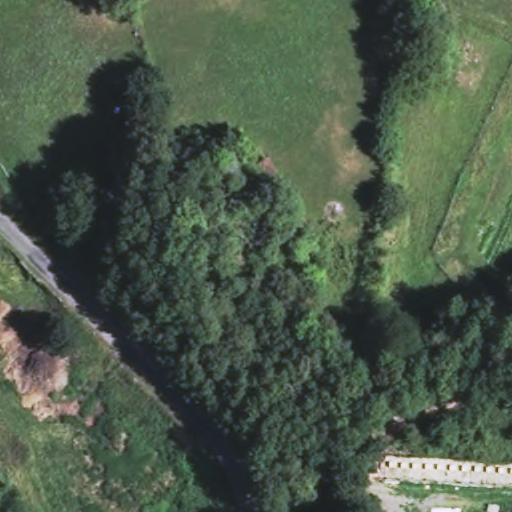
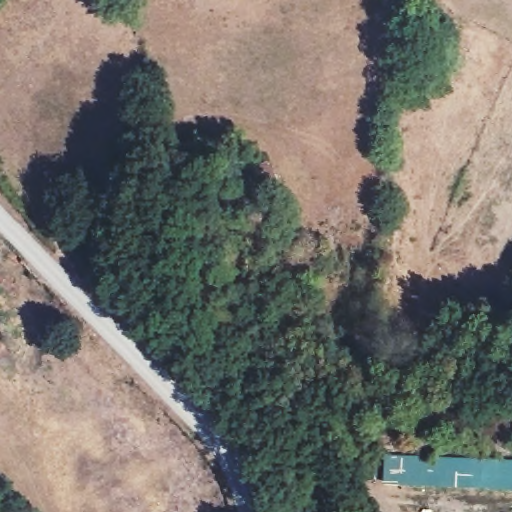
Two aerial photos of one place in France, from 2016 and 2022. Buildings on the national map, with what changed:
unchanged [(238,180),(267,158),(285,186),(257,205),(238,180)]

